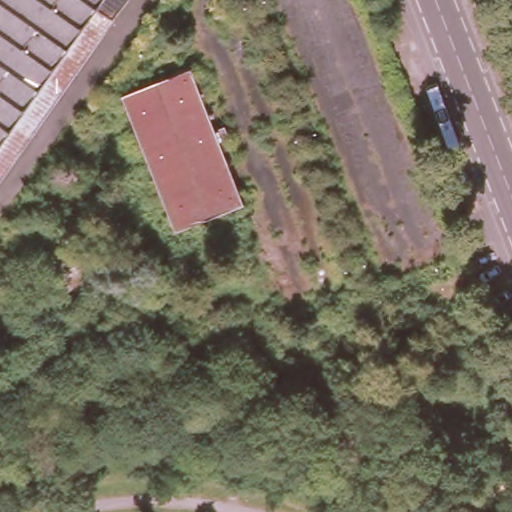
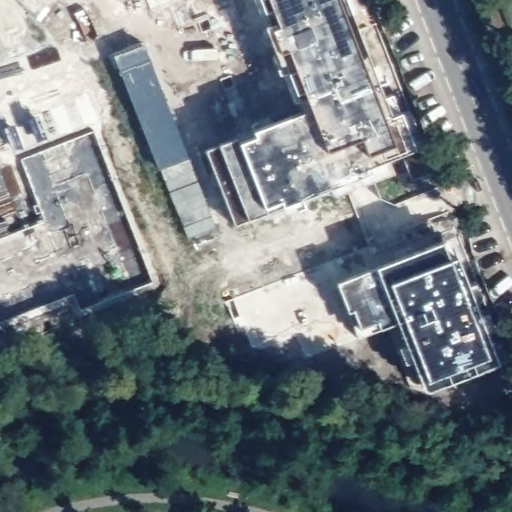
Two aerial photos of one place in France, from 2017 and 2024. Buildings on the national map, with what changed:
demolished [(0,137),(0,0),(97,0),(0,137)]
demolished [(116,8),(103,0),(123,0),(116,8)]
new [(357,12),(350,14),(370,66),(378,63),(385,81),(377,84),(382,97),(391,93),(397,112),(400,112),(413,150),(388,160),(393,173),(336,195),(333,187),(301,199),(303,207),(285,215),(282,208),(246,221),(233,226),(203,151),(218,145),(252,131),(308,110),(303,97),(292,103),(282,74),(278,76),(275,67),(278,66),(262,27),(252,0),(354,0),(357,12)]
new [(188,157),(215,227),(187,237),(161,170),(159,171),(111,55),(142,44),(188,157)]
demolished [(246,200),(176,227),(124,90),(193,63),(246,200)]
new [(20,159),(93,130),(152,283),(80,312),(72,293),(0,323),(0,238),(44,221),(20,159)]
new [(498,365),(424,392),(412,363),(405,365),(398,348),(405,345),(396,323),(380,329),(357,337),(352,326),(357,325),(350,312),(346,313),(335,282),(374,267),(450,238),(498,365)]

